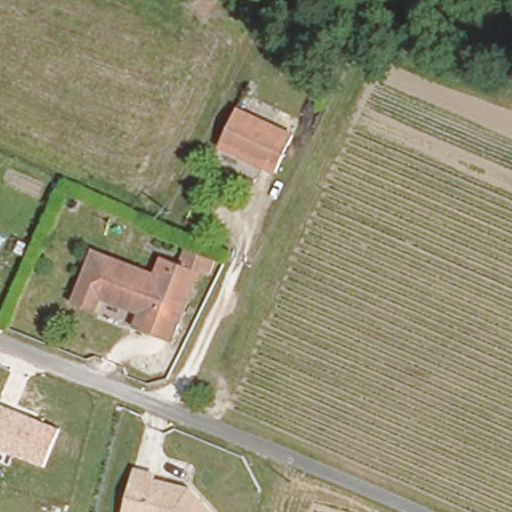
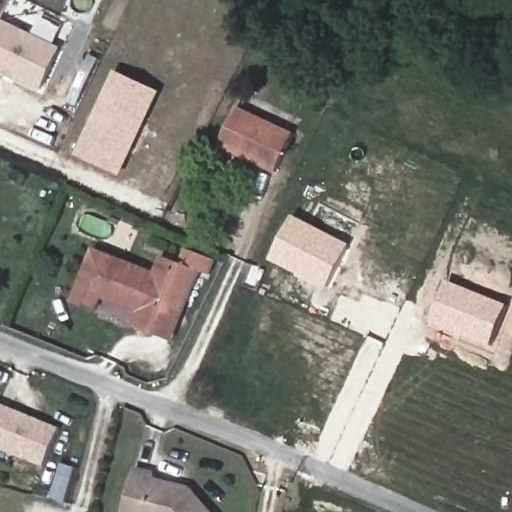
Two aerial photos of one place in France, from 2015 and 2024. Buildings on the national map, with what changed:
new [(0,21),(60,50),(40,92),(0,73),(0,21)]
new [(115,71),(161,92),(121,177),(75,155),(115,71)]
unchanged [(221,147),(239,109),(295,136),(279,174),(221,147)]
new [(293,217),(350,245),(326,290),(269,261),(293,217)]
unchanged [(138,328),(143,315),(96,297),(91,311),(69,302),(92,251),(156,278),(165,257),(180,264),(188,247),(218,260),(212,277),(200,273),(180,318),(170,341),(153,335),(138,328)]
new [(448,281),(509,305),(493,347),(431,323),(448,281)]
unchanged [(0,449),(0,404),(60,428),(45,467),(0,449)]
unchanged [(159,474),(158,479),(192,486),(216,512),(126,512),(137,468),(159,474)]

